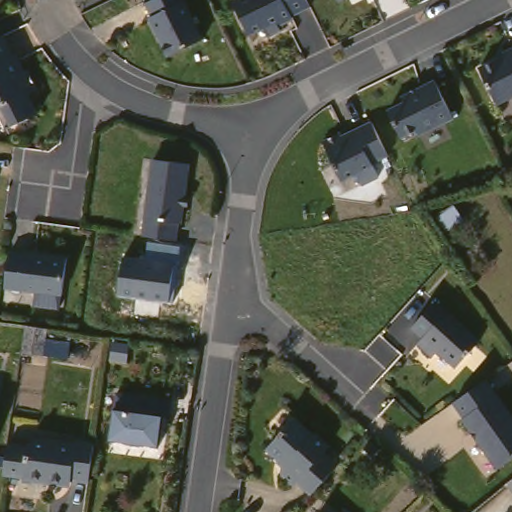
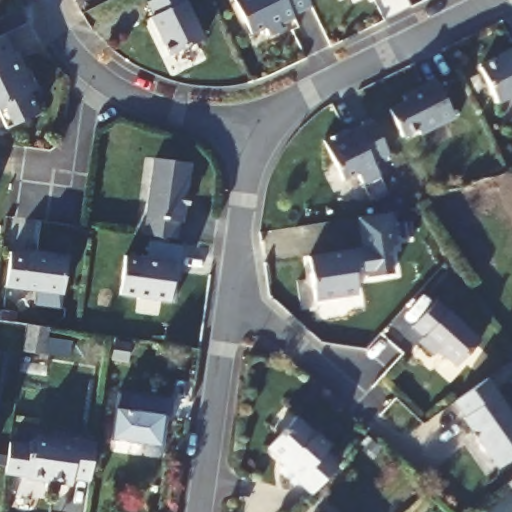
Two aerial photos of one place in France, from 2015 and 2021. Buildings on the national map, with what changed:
unchanged [(155,13),(147,0),(149,0),(186,0),(188,3),(204,37),(172,52),(153,18),(152,15),(155,13)]
unchanged [(311,5),(293,15),(293,16),(282,21),(285,27),(268,35),(265,27),(250,34),(235,0),(309,0),(311,5)]
unchanged [(2,33),(3,33),(12,51),(15,50),(22,64),(24,68),(27,67),(37,87),(28,91),(38,111),(6,127),(0,115),(0,35),(2,33)]
unchanged [(480,67),(506,54),(505,52),(512,49),(512,96),(498,103),(480,67)]
unchanged [(420,133),(417,128),(403,135),(389,108),(405,100),(403,95),(436,79),(449,106),(455,116),(453,117),(420,133)]
unchanged [(394,152),(380,160),(386,173),(369,182),(364,171),(349,178),(329,137),(348,128),(349,131),(376,118),(378,117),(395,152),(394,152)]
unchanged [(145,231),(156,155),(190,160),(182,219),(179,219),(177,236),(145,231)]
new [(363,251),(359,220),(391,215),(395,248),(388,249),(392,276),(366,280),(365,272),(353,274),(356,296),(313,301),(308,258),(351,253),(363,251)]
unchanged [(173,301),(118,293),(123,255),(145,257),(148,240),(181,246),(173,301)]
unchanged [(6,285),(11,251),(50,257),(50,254),(68,256),(63,293),(6,285)]
unchanged [(439,300),(481,342),(457,367),(439,350),(434,355),(420,341),(425,336),(414,325),(439,300)]
unchanged [(25,335),(44,337),(40,361),(22,358),(25,335)]
unchanged [(128,344),(126,360),(111,358),(113,342),(128,344)]
unchanged [(512,404),(512,460),(504,465),(469,415),(471,413),(460,398),(493,375),(512,404)]
unchanged [(176,396),(174,413),(168,412),(164,442),(143,439),(143,440),(130,438),(130,437),(116,435),(122,389),(176,396)]
unchanged [(6,404),(0,435),(0,403),(6,404)]
unchanged [(335,446),(330,452),(343,464),(338,470),(335,473),(316,494),(303,482),(300,485),(286,472),(285,468),(288,466),(283,461),(285,459),(271,447),(300,416),(319,433),(320,432),(335,446)]
unchanged [(92,445),(93,442),(110,445),(110,449),(106,482),(105,485),(88,482),(88,485),(67,482),(66,487),(40,483),(40,481),(19,478),(20,472),(24,446),(44,449),(44,446),(53,440),(92,445)]
unchanged [(329,512),(331,509),(334,512),(329,512)]

